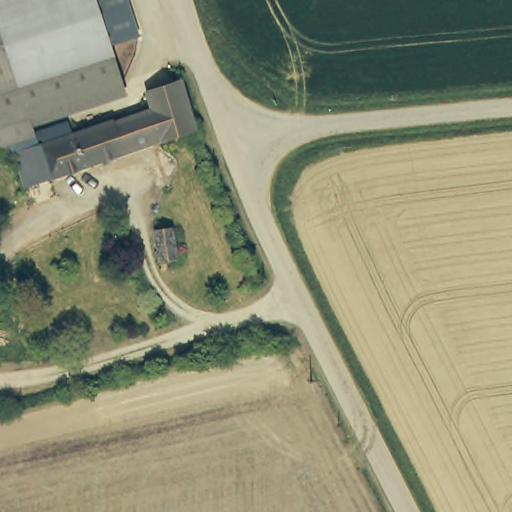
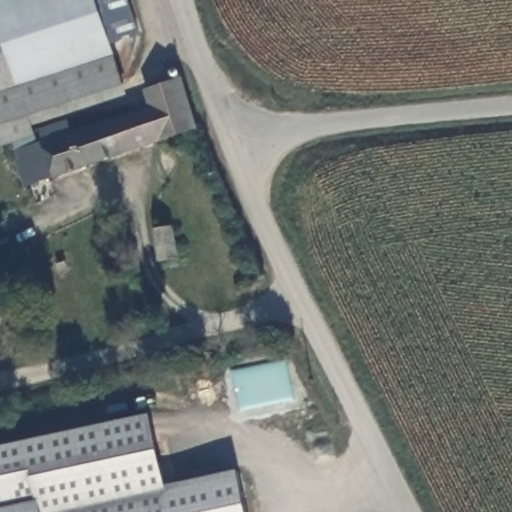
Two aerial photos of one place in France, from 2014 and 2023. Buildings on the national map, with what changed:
unchanged [(96,0),(124,80),(28,112),(35,130),(0,142),(0,0),(96,0)]
unchanged [(129,0),(141,35),(112,45),(96,0),(129,0)]
unchanged [(66,120),(70,130),(115,115),(117,119),(150,107),(143,88),(177,76),(195,124),(50,173),(35,130),(66,120)]
unchanged [(178,253),(158,257),(150,221),(169,216),(178,253)]
new [(151,415),(165,486),(237,471),(246,512),(0,512),(0,446),(151,415)]

